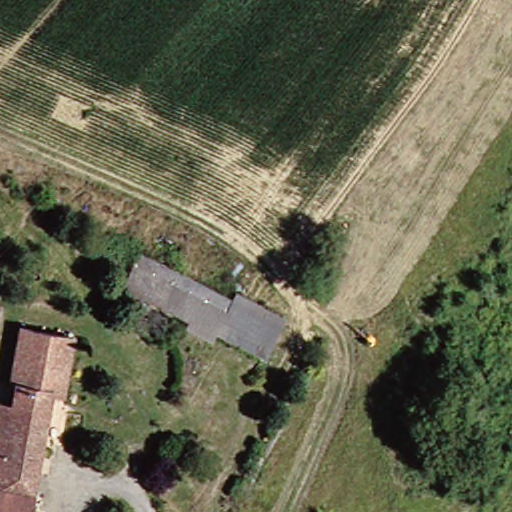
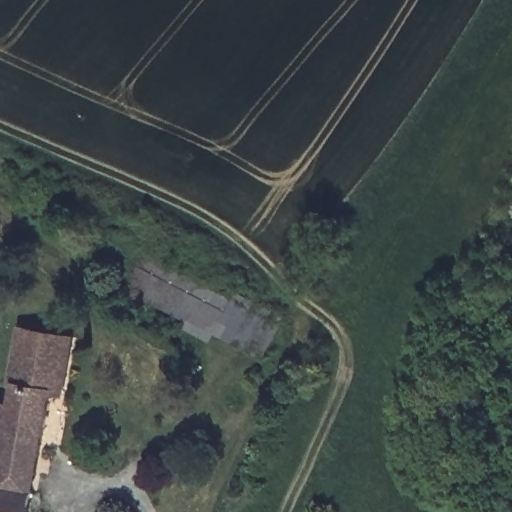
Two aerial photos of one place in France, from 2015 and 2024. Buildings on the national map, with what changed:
unchanged [(156,257),(246,300),(240,310),(151,267),(156,257)]
unchanged [(231,330),(141,288),(151,267),(240,310),(231,330)]
unchanged [(268,324),(281,330),(274,350),(255,342),(231,330),(240,310),(268,324)]
unchanged [(21,386),(15,384),(26,326),(70,335),(59,391),(56,391),(43,456),(8,450),(0,482),(0,406),(16,409),(21,386)]
unchanged [(0,482),(8,450),(43,456),(36,493),(0,486),(0,482)]
unchanged [(0,512),(0,486),(36,493),(32,512),(0,512)]

